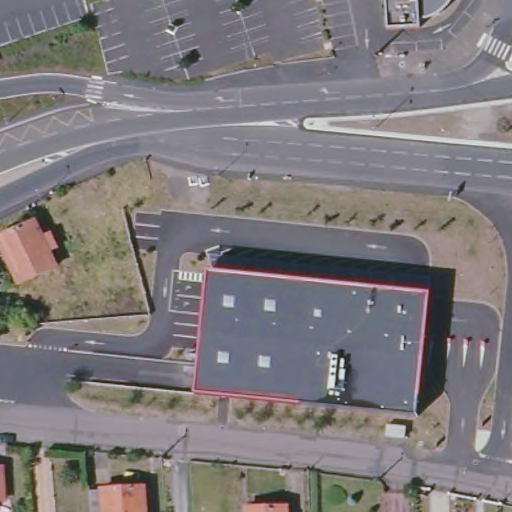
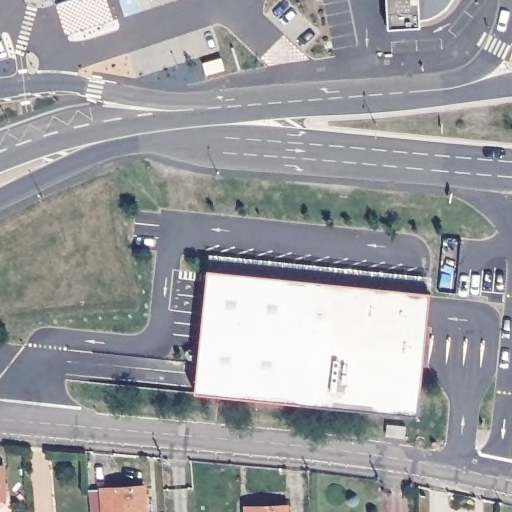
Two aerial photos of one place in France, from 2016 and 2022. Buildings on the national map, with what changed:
new [(45,1),(44,0),(46,0),(45,1)]
new [(57,3),(56,0),(66,0),(57,3)]
unchanged [(447,1),(443,6),(440,9),(433,14),(428,17),(423,18),(419,19),(416,19),(417,26),(387,29),(385,0),(448,0),(447,1)]
new [(224,58),(226,69),(208,73),(205,62),(224,58)]
demolished [(18,286),(0,243),(0,239),(40,221),(47,237),(53,234),(60,250),(53,253),(60,268),(18,286)]
unchanged [(197,395),(208,272),(431,294),(421,416),(197,395)]
unchanged [(0,503),(0,467),(6,467),(10,502),(0,503)]
unchanged [(151,512),(96,512),(95,491),(149,487),(151,512)]
unchanged [(288,512),(246,512),(246,508),(287,507),(288,512)]

